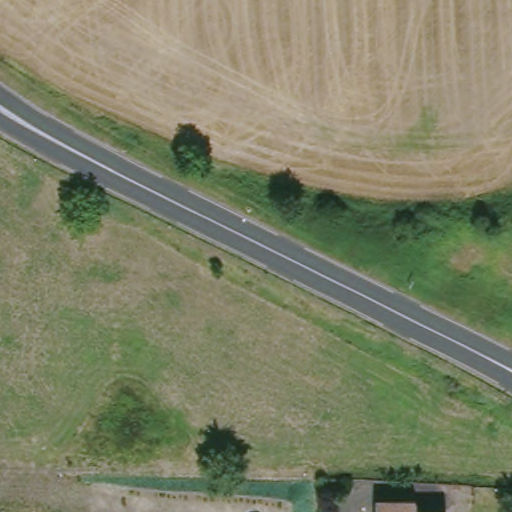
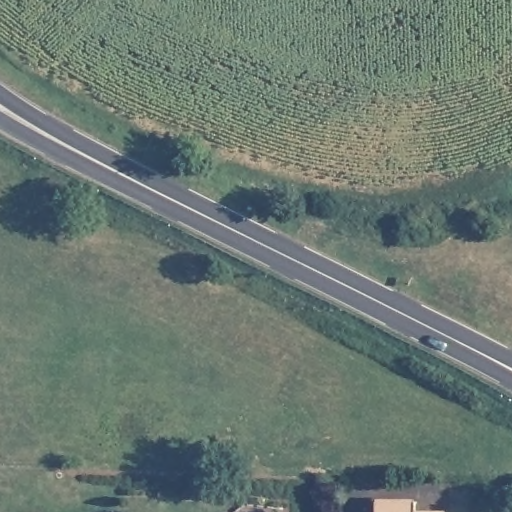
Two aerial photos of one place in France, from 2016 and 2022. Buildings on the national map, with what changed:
unchanged [(423,505),(423,512),(381,512),(381,503),(423,505)]

